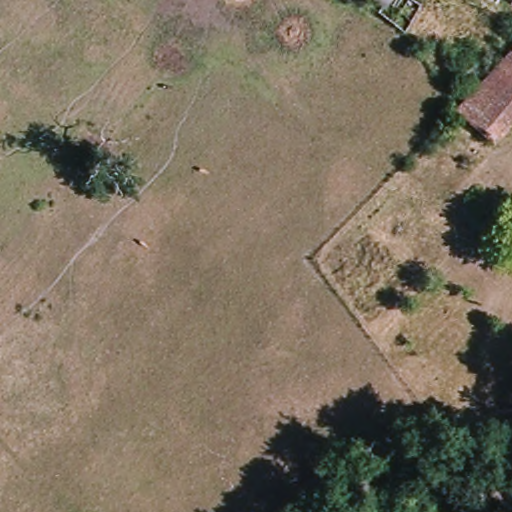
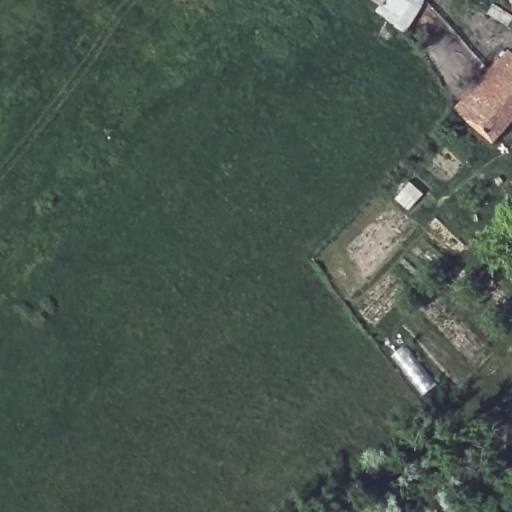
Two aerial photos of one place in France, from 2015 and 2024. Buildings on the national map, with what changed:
unchanged [(395,30),(371,10),(376,4),(371,0),(410,0),(413,2),(395,30)]
unchanged [(487,140),(456,112),(512,51),(512,113),(487,140)]

